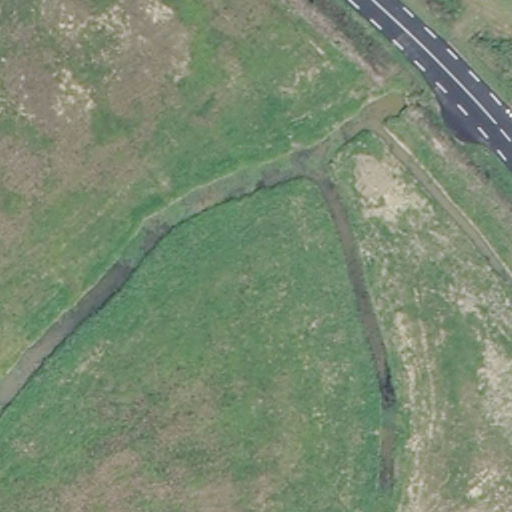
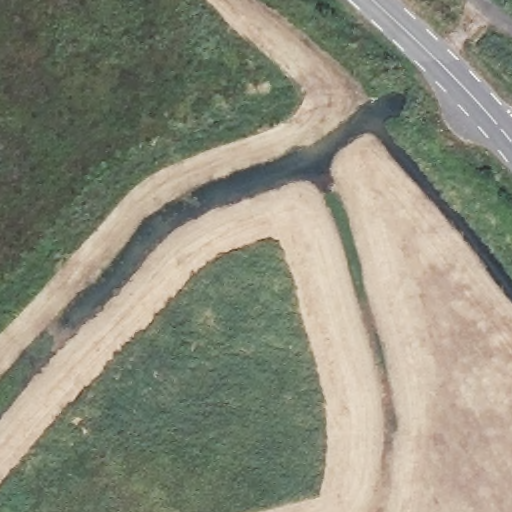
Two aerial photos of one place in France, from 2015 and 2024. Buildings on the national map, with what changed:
[]

